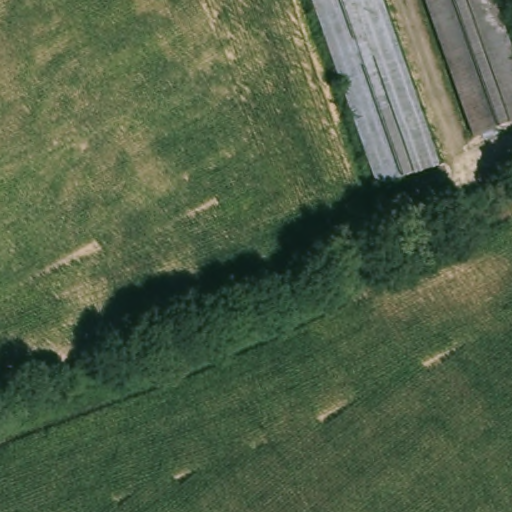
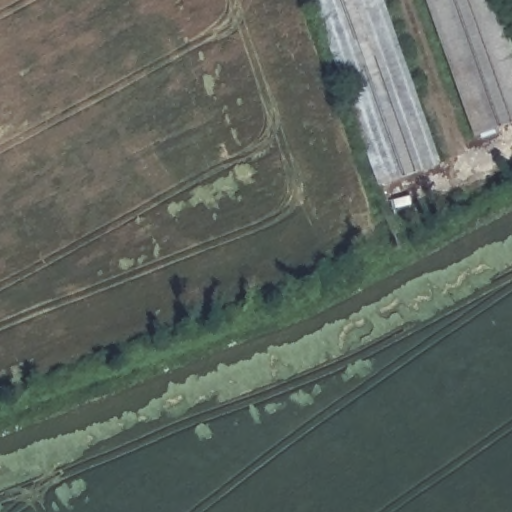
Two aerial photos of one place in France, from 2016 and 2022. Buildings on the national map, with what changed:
unchanged [(384,181),(317,0),(380,0),(440,162),(384,181)]
unchanged [(493,0),(512,53),(512,119),(479,132),(431,0),(493,0)]

